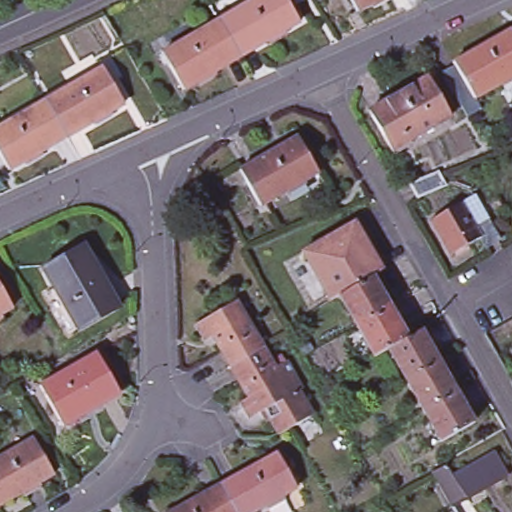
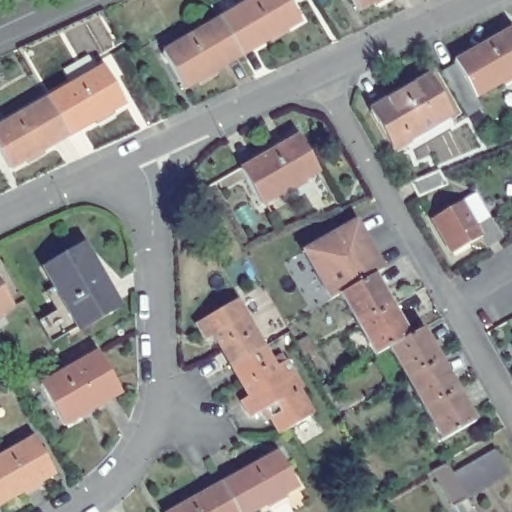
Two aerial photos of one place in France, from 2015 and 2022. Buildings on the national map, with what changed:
unchanged [(192,44),(183,29),(210,13),(232,0),(237,0),(245,13),(268,0),(283,0),(300,29),(240,63),(183,96),(163,60),(192,44)]
unchanged [(323,7),(319,0),(331,0),(332,2),(323,7)]
unchanged [(363,14),(355,0),(387,0),(363,14)]
unchanged [(506,93),(503,88),(478,102),(458,67),(512,35),(512,89),(506,93)]
unchanged [(72,137),(70,136),(50,102),(110,68),(132,103),(72,137)]
unchanged [(416,146),(397,156),(372,114),(388,105),(391,108),(418,92),(417,89),(432,81),(452,119),(412,142),(416,146)]
unchanged [(0,145),(0,130),(50,102),(70,136),(72,137),(15,170),(0,145)]
unchanged [(236,174),(249,167),(305,134),(327,169),(270,202),(257,210),(236,174)]
unchanged [(423,182),(442,174),(449,189),(420,201),(415,186),(423,182)]
unchanged [(488,250),(483,242),(452,258),(432,223),(464,206),(477,199),(490,221),(502,243),(488,250)]
unchanged [(328,300),(299,250),(350,220),(360,237),(356,239),(360,246),(363,244),(378,270),(368,276),(336,295),(328,300)]
unchanged [(94,244),(126,306),(83,327),(80,322),(72,327),(53,290),(62,285),(52,265),(94,244)]
unchanged [(336,295),(368,276),(386,306),(354,325),(336,295)]
unchanged [(0,315),(0,277),(17,306),(0,315)]
unchanged [(238,302),(267,351),(235,368),(217,337),(209,341),(200,324),(238,302)]
unchanged [(396,341),(385,347),(372,356),(372,355),(354,325),(386,306),(404,337),(396,341)]
unchanged [(419,328),(437,359),(403,378),(385,347),(396,341),(404,337),(419,328)]
unchanged [(253,399),(235,368),(267,351),(277,368),(293,397),(268,412),(254,421),(245,404),(253,399)]
unchanged [(45,389),(102,357),(123,396),(67,428),(45,389)]
unchanged [(437,359),(455,389),(422,409),(403,378),(437,359)]
unchanged [(293,397),(277,368),(292,360),(320,412),(282,433),(268,412),(293,397)]
unchanged [(473,421),(440,440),(422,409),(455,389),(473,421)]
unchanged [(42,491),(25,500),(22,493),(0,505),(0,459),(35,440),(55,474),(39,483),(42,491)]
unchanged [(438,479),(455,469),(497,445),(512,470),(470,493),(453,503),(438,479)]
unchanged [(288,501),(270,510),(268,506),(257,512),(236,512),(223,489),(222,487),(280,453),(300,487),(285,496),(288,501)]
unchanged [(223,489),(236,512),(177,512),(222,487),(223,489)]

